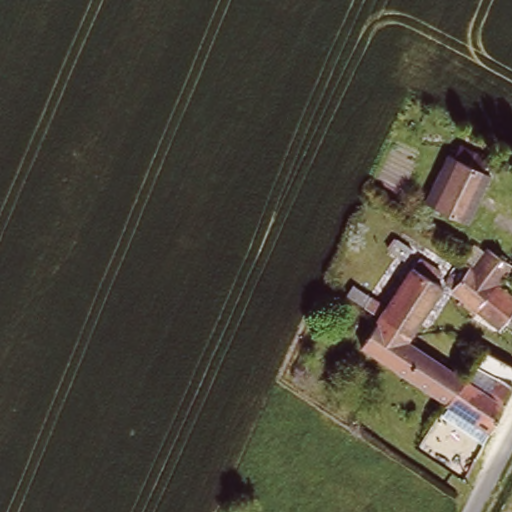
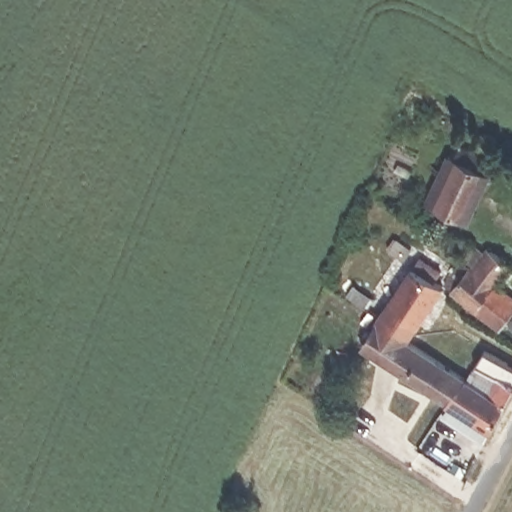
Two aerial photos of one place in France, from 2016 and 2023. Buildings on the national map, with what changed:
unchanged [(450,152),(489,171),(465,220),(427,202),(450,152)]
unchanged [(423,277),(431,263),(415,252),(425,236),(462,262),(444,287),(442,288),(423,277)]
unchanged [(462,262),(464,262),(477,245),(487,252),(488,251),(512,267),(497,287),(512,299),(512,312),(499,330),(444,287),(462,262)]
unchanged [(409,338),(379,320),(412,270),(423,277),(442,288),(409,338)]
unchanged [(409,338),(405,342),(465,380),(445,403),(360,348),(379,320),(409,338)]
unchanged [(489,396),(499,378),(475,366),(485,351),(512,366),(512,392),(490,432),(445,403),(465,380),(489,396)]

